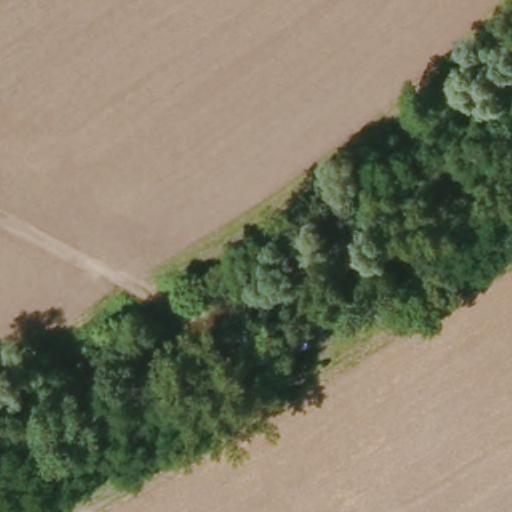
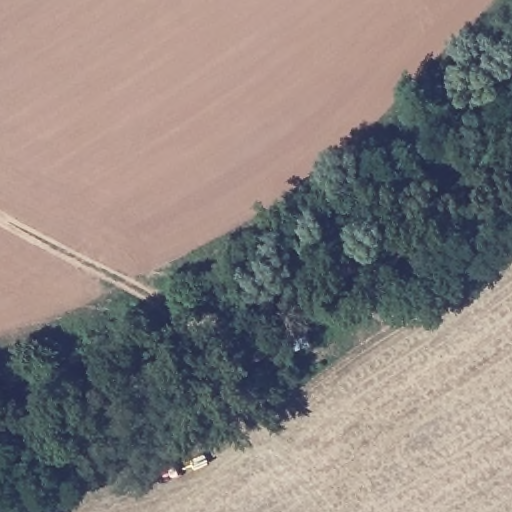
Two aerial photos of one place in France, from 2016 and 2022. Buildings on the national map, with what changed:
unchanged [(234,355),(219,340),(237,321),(254,336),(234,355)]

